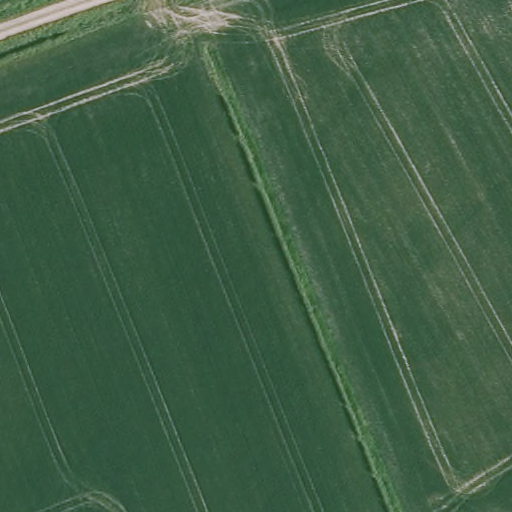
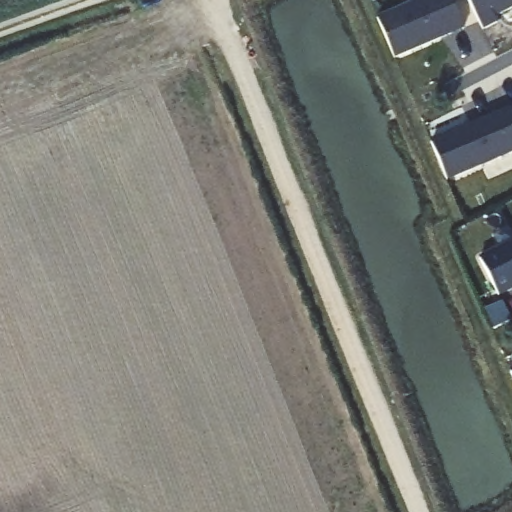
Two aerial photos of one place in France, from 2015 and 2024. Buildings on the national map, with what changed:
new [(453,0),(466,28),(396,58),(379,19),(422,0),(453,0)]
new [(512,0),(512,8),(496,16),(499,22),(484,29),(470,0),(512,0)]
new [(483,121),(512,109),(512,153),(449,180),(433,143),(472,126),(483,121)]
new [(482,259),(512,243),(512,290),(501,296),(482,259)]

